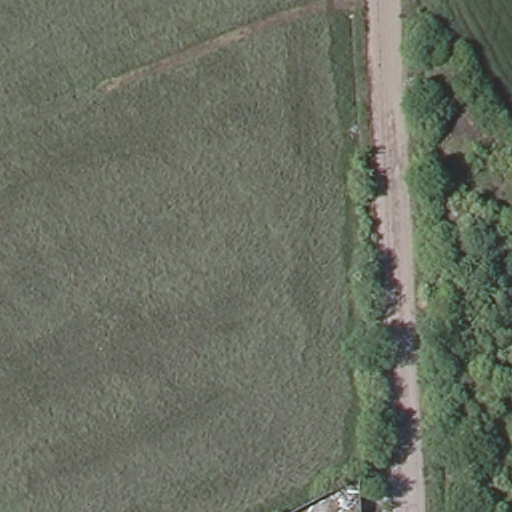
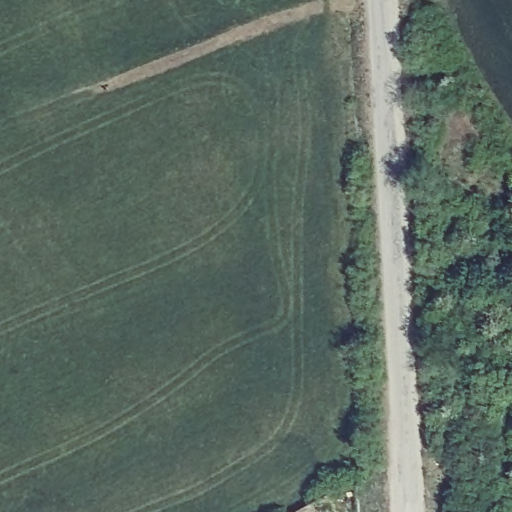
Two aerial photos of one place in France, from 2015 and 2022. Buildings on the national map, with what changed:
unchanged [(508,141),(512,148),(512,165),(502,170),(492,150),(508,141)]

